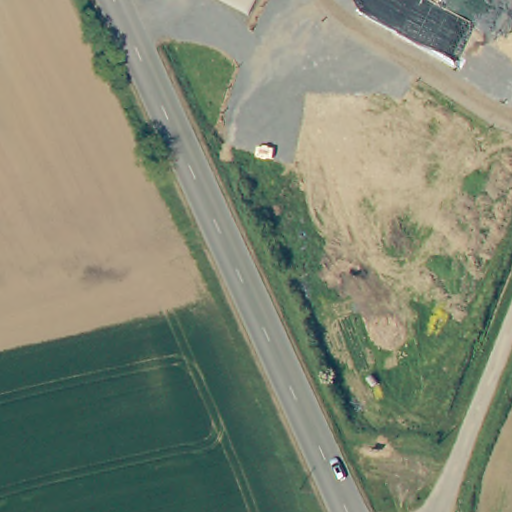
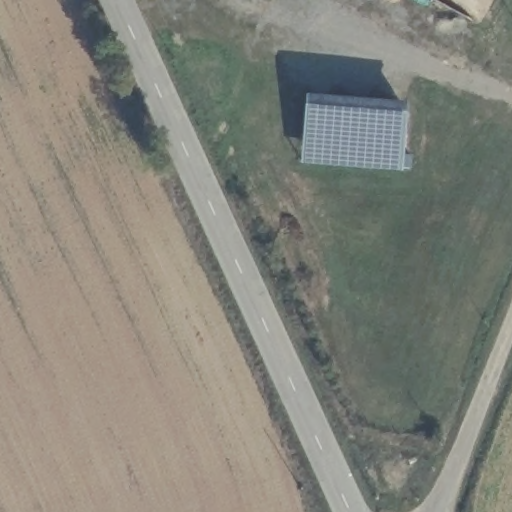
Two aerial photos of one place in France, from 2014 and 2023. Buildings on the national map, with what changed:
new [(307,95),(408,102),(402,171),(302,164),(307,95)]

